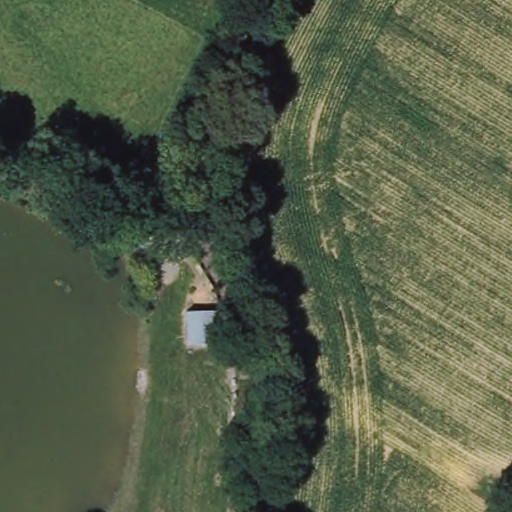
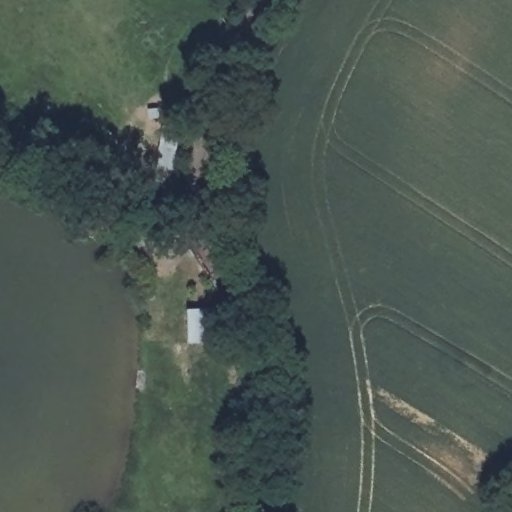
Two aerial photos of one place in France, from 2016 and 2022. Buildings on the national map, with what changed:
unchanged [(219,306),(218,339),(188,338),(186,306),(219,306)]

